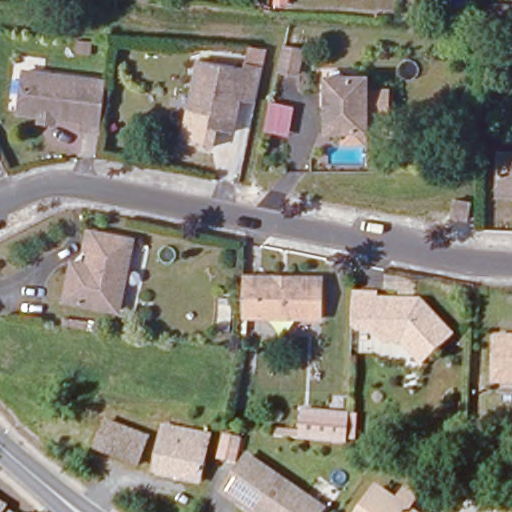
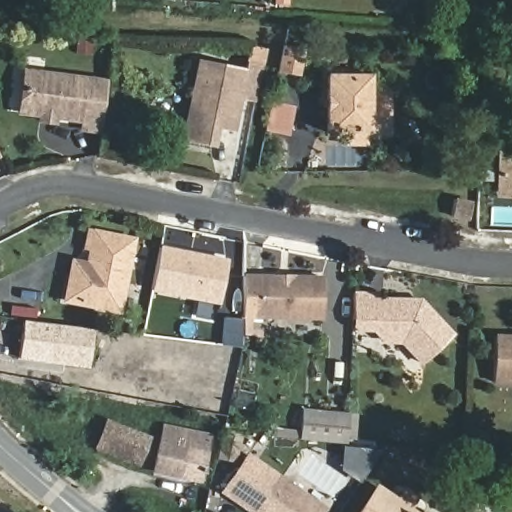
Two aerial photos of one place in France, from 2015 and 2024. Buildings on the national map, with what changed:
new [(283,46),(303,50),(298,74),(278,70),(283,46)]
unchanged [(88,58),(86,70),(71,69),(73,56),(88,58)]
unchanged [(258,104),(242,101),(235,135),(212,130),(214,119),(200,115),(206,85),(198,84),(203,62),(246,71),(249,65),(266,68),(258,104)]
unchanged [(81,132),(81,123),(19,115),(25,73),(105,85),(98,134),(81,132)]
unchanged [(366,79),(366,134),(325,134),(325,78),(366,79)]
new [(270,101),(292,106),(286,136),(264,131),(270,101)]
unchanged [(495,186),(497,149),(512,150),(512,187),(495,186)]
unchanged [(464,211),(461,227),(444,224),(447,208),(464,211)]
unchanged [(134,243),(119,314),(66,303),(73,278),(86,281),(96,235),(134,243)]
new [(227,258),(219,305),(151,291),(160,246),(227,258)]
unchanged [(275,280),(279,285),(291,285),(295,280),(324,280),(323,321),(244,320),(245,279),(275,280)]
unchanged [(377,292),(377,298),(399,299),(403,303),(413,303),(416,300),(422,300),(454,335),(424,362),(408,345),(387,340),(379,331),(379,320),(354,318),(355,291),(377,292)]
new [(21,321),(90,330),(86,368),(16,359),(21,321)]
unchanged [(512,341),(512,387),(495,385),(497,340),(512,341)]
unchanged [(76,402),(73,417),(53,413),(56,398),(76,402)]
unchanged [(347,440),(347,442),(301,438),(276,436),(277,428),(302,429),(303,410),(350,413),(358,413),(356,440),(347,440)]
unchanged [(144,436),(133,463),(91,446),(102,420),(144,436)]
unchanged [(211,438),(201,484),(154,475),(164,429),(211,438)]
unchanged [(244,437),(242,452),(237,464),(221,462),(222,436),(244,437)]
unchanged [(320,512),(245,512),(222,498),(244,461),(308,500),(322,509),(320,512)]
unchanged [(373,487),(408,512),(355,512),(373,487)]
unchanged [(0,501),(6,505),(5,505),(12,512),(0,512),(0,501)]

